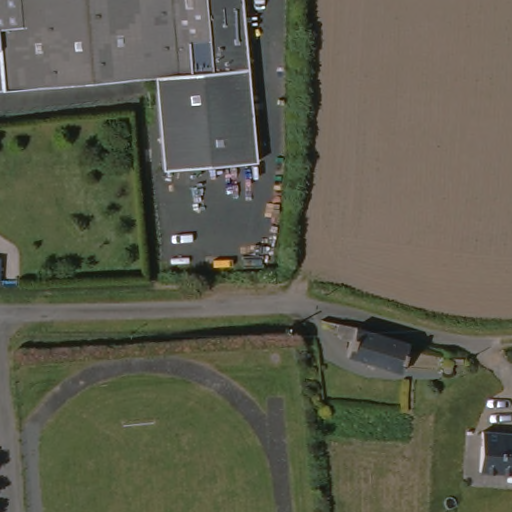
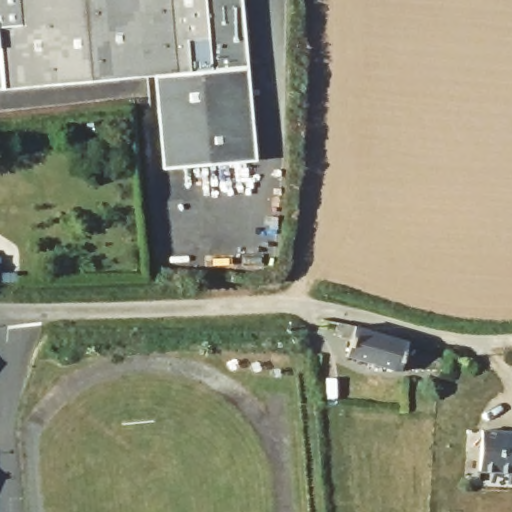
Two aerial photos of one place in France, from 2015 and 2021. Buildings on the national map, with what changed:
unchanged [(158,172),(151,82),(0,94),(0,0),(239,0),(254,164),(158,172)]
unchanged [(347,355),(350,338),(341,335),(342,330),(335,329),(336,322),(352,325),(364,328),(408,341),(399,370),(347,355)]
unchanged [(512,481),(475,478),(478,431),(512,434),(512,481)]

